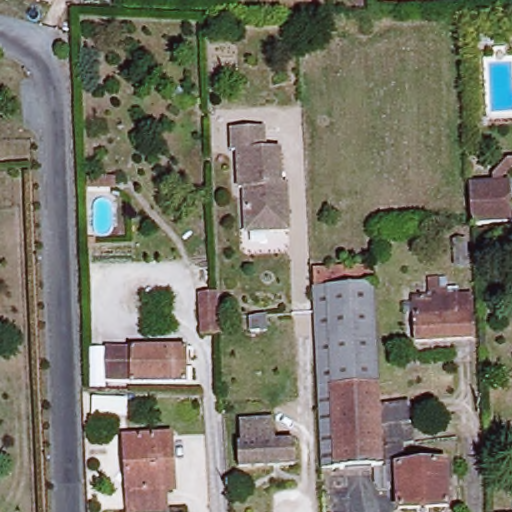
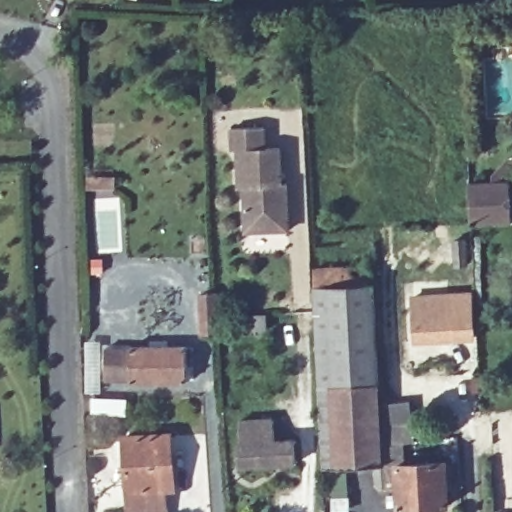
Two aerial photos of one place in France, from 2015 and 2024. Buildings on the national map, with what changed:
unchanged [(285,193),(286,232),(267,232),(267,229),(244,230),(241,190),(236,190),(234,152),(230,152),(229,131),(260,129),(261,150),(277,150),(280,185),(285,185),(285,193)]
unchanged [(505,159),(512,159),(512,169),(510,169),(503,177),(502,181),(490,182),(490,174),(505,159)]
unchanged [(490,182),(502,181),(506,181),(508,223),(468,224),(466,183),(490,182)]
unchanged [(372,279),(372,285),(311,289),(310,268),(371,265),(372,279)]
unchanged [(438,276),(438,289),(445,289),(445,296),(468,293),(470,338),(413,340),(411,297),(426,296),(425,277),(438,276)]
unchanged [(372,285),(378,423),(378,444),(379,465),(320,468),(315,380),(311,289),(372,285)]
unchanged [(214,295),(216,333),(200,334),(200,295),(214,295)]
unchanged [(265,315),(266,330),(250,330),(249,316),(265,315)]
unchanged [(185,346),(185,381),(130,382),(130,377),(106,378),(106,347),(185,346)]
unchanged [(275,419),(276,441),(294,440),(295,464),(239,467),(237,443),(241,442),(241,420),(275,419)]
unchanged [(442,462),(445,505),(398,508),(395,464),(385,464),(382,444),(380,444),(380,424),(411,420),(412,441),(400,442),(402,463),(442,462)]
unchanged [(124,439),(170,436),(175,491),(165,492),(166,512),(129,512),(124,439)]

